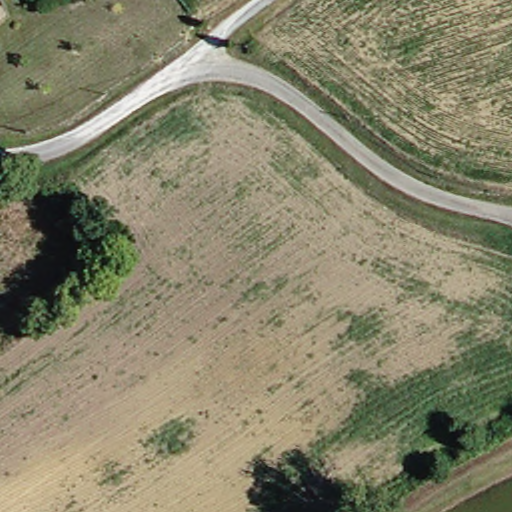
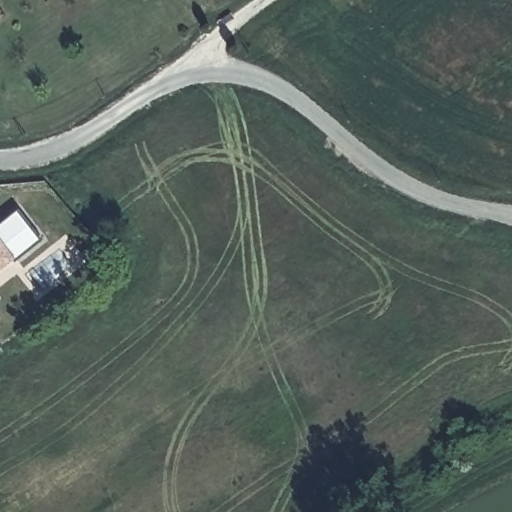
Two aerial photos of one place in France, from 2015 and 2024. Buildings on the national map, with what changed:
unchanged [(1,20),(0,21),(0,19),(1,20)]
new [(0,272),(0,225),(18,210),(42,240),(0,272)]
new [(3,298),(0,300),(0,294),(3,298)]

